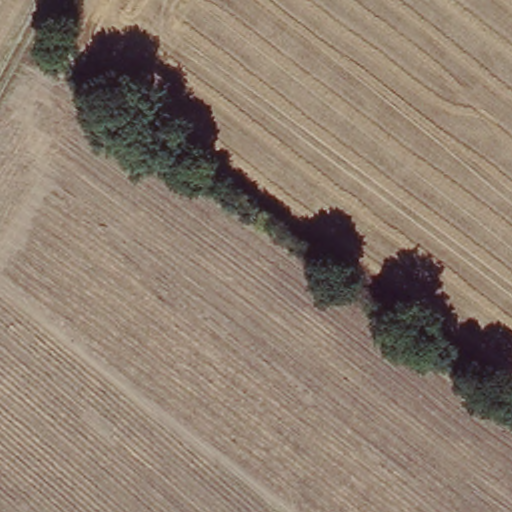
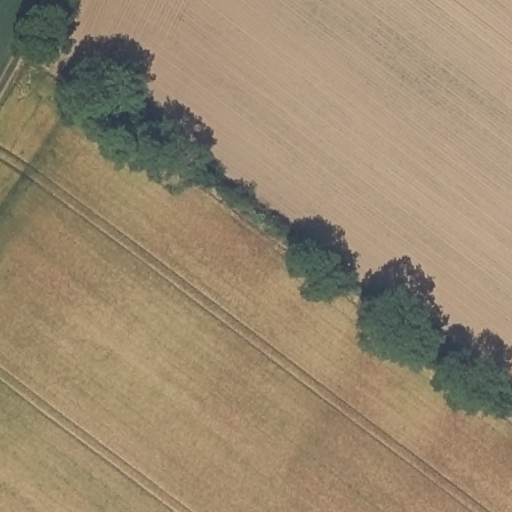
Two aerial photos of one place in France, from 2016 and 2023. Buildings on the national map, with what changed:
[]

